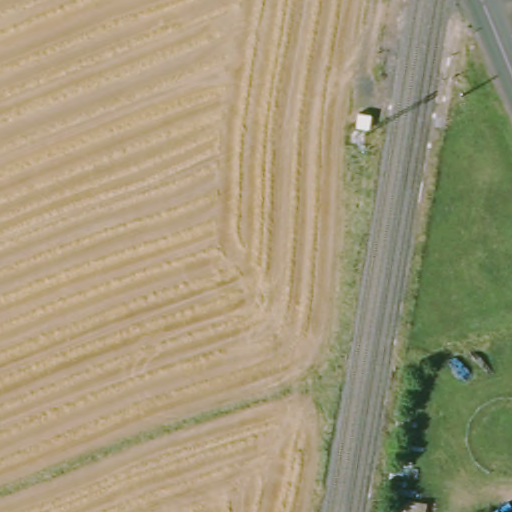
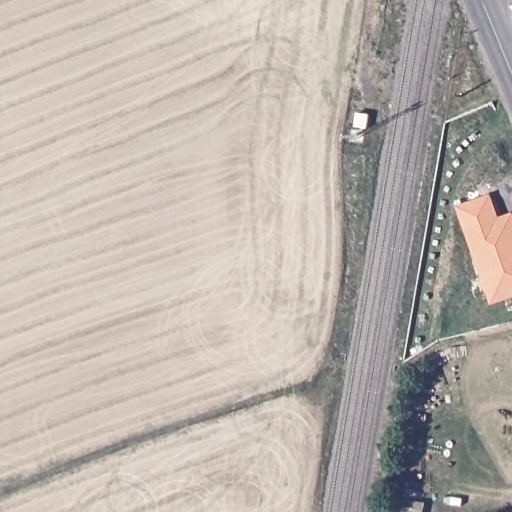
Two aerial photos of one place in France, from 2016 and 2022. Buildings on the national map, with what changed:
new [(446,214),(477,203),(486,226),(500,221),(512,255),(512,299),(481,310),(446,214)]

